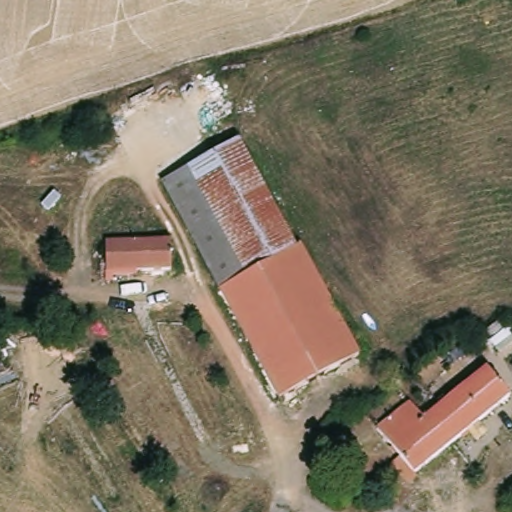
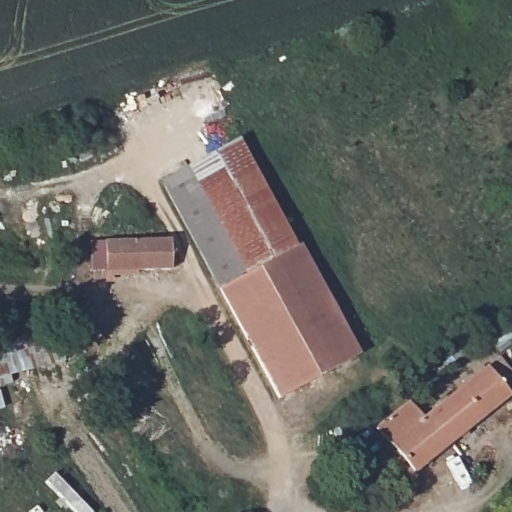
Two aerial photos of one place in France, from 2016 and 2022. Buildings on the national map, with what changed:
unchanged [(298,253),(300,251),(364,353),(290,399),(159,191),(230,145),(298,253)]
unchanged [(168,239),(170,270),(105,276),(103,245),(168,239)]
unchanged [(511,396),(419,475),(382,431),(414,404),(427,419),(489,368),(511,396)]

